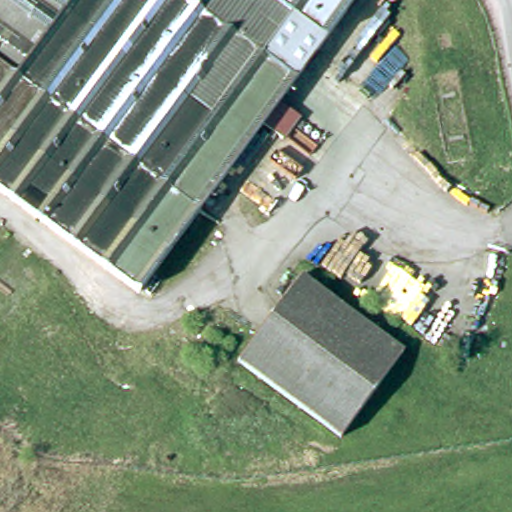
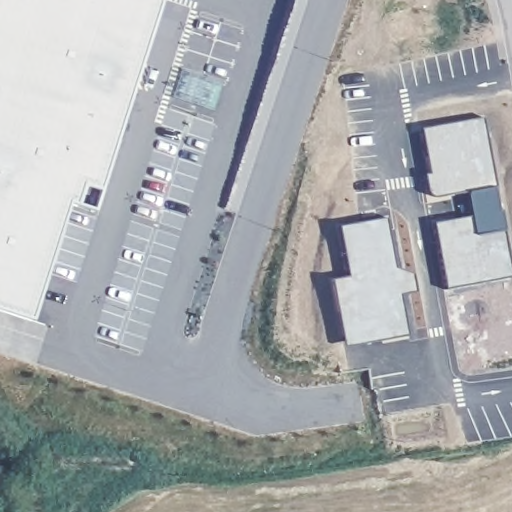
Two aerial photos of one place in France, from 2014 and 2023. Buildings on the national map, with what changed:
demolished [(0,194),(0,0),(362,0),(143,298),(0,194)]
new [(78,179),(31,324),(0,315),(0,0),(162,0),(109,188),(78,179)]
new [(435,224),(468,212),(469,193),(429,196),(422,175),(427,174),(419,127),(484,116),(512,252),(512,280),(448,290),(435,224)]
new [(331,280),(346,278),(339,227),(387,219),(396,271),(413,276),(416,290),(399,296),(408,333),(341,346),(331,280)]
demolished [(344,450),(241,373),(304,286),(408,362),(344,450)]

